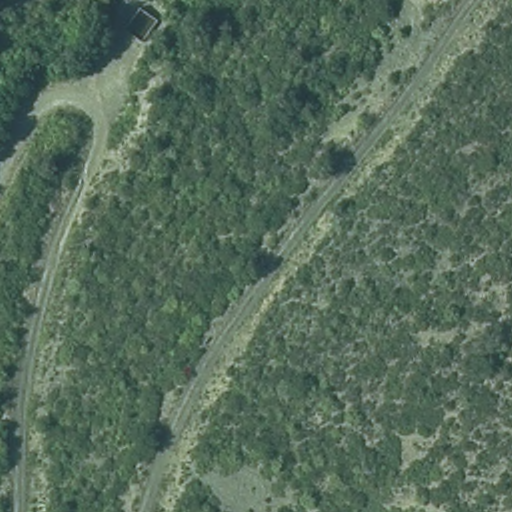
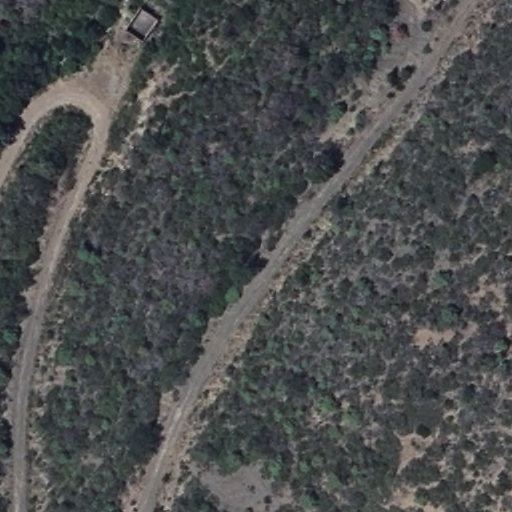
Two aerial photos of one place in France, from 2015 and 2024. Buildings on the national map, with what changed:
unchanged [(155,25),(141,44),(125,33),(139,13),(155,25)]

